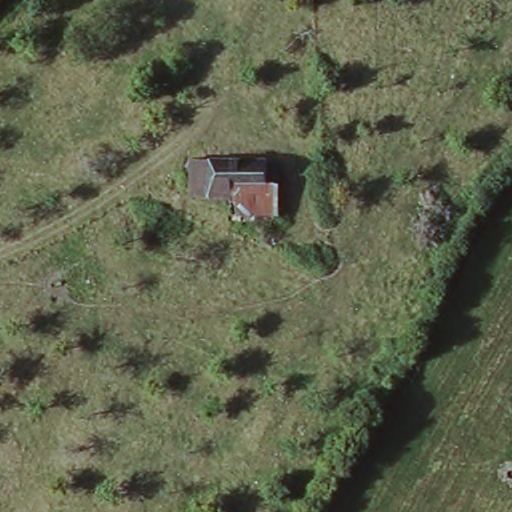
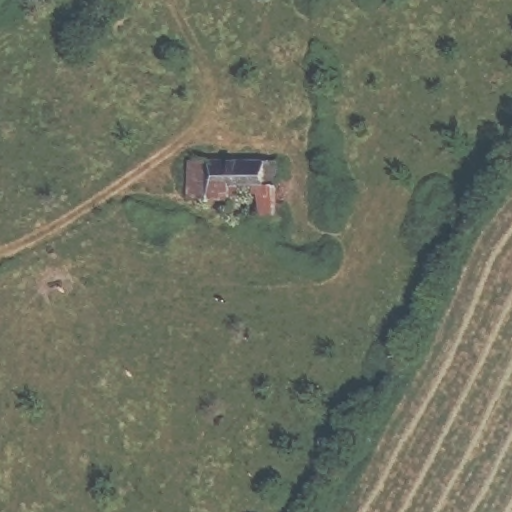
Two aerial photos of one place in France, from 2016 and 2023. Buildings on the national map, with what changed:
unchanged [(235,214),(232,195),(190,198),(189,160),(280,152),(282,191),(284,210),(235,214)]

